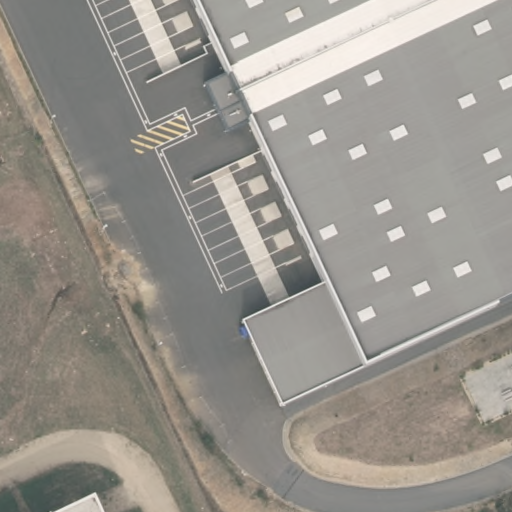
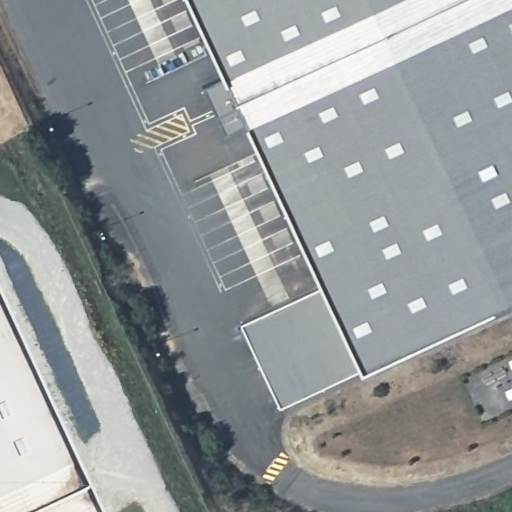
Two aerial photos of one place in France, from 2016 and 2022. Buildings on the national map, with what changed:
unchanged [(241,323),(322,284),(248,122),(226,132),(205,85),(226,75),(191,0),(512,0),(512,298),(279,405),(241,323)]
new [(62,512),(0,512),(0,297),(94,497),(84,502),(62,512)]
unchanged [(100,512),(62,512),(94,497),(100,512)]

